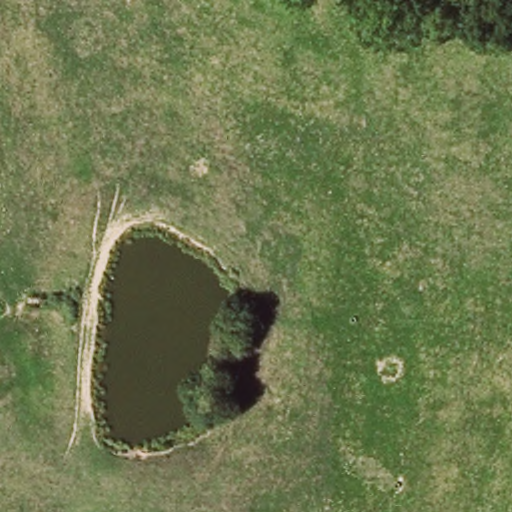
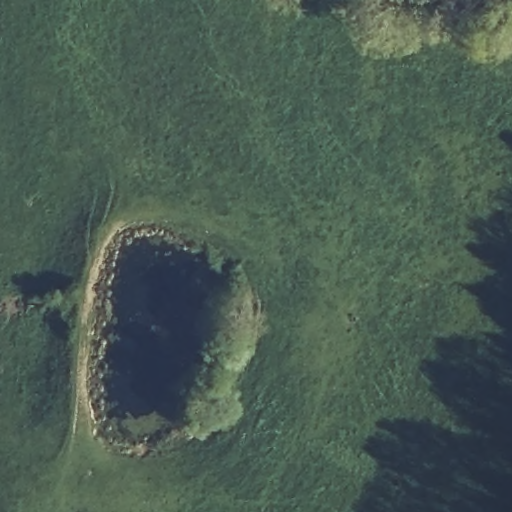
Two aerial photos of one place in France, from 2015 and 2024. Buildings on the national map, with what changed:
[]

